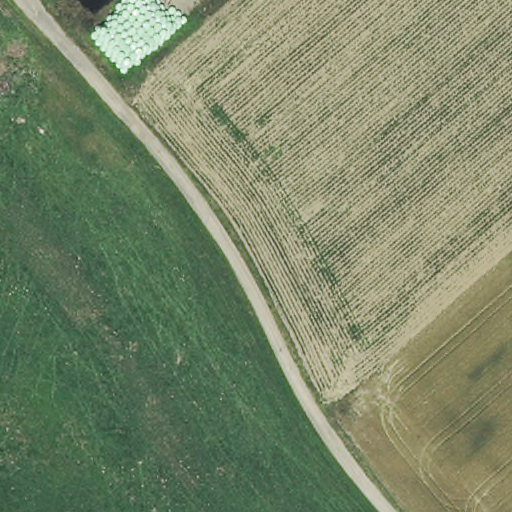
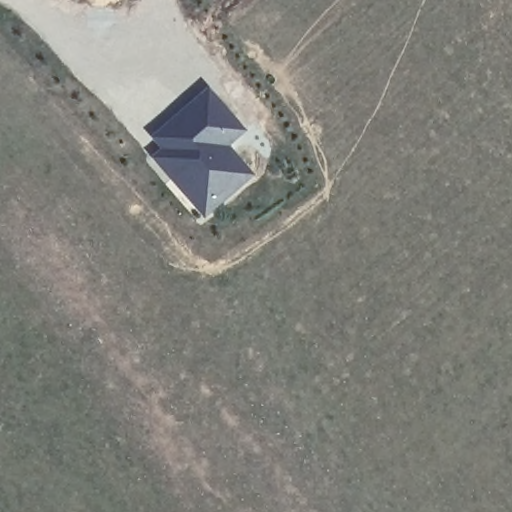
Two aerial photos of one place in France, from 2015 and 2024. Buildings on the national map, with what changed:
new [(245,132),(229,147),(254,178),(205,222),(150,158),(159,150),(150,137),(207,87),(245,132)]

